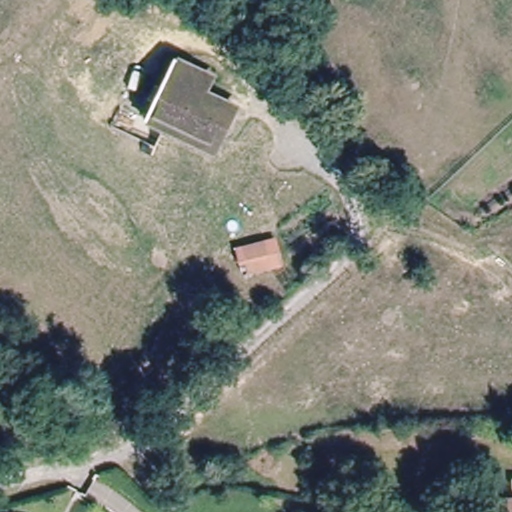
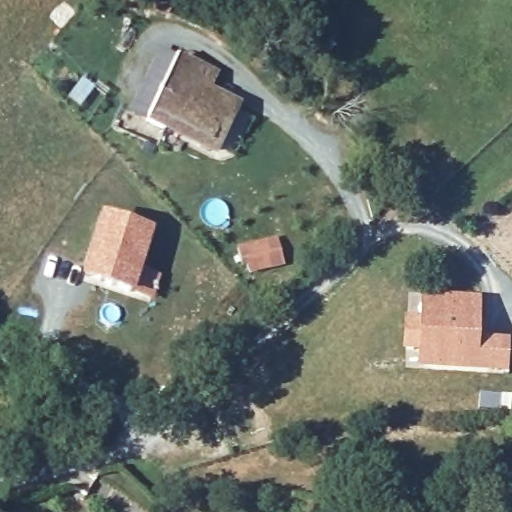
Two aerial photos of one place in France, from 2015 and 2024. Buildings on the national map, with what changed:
unchanged [(217,155),(149,122),(178,62),(215,80),(208,96),(238,110),(217,155)]
new [(131,295),(81,280),(100,214),(153,231),(141,270),(160,275),(153,301),(131,295)]
unchanged [(248,260),(243,262),(239,247),(264,241),(279,237),(284,263),(270,266),(251,271),(248,260)]
new [(416,370),(418,352),(401,351),(403,317),(419,317),(420,293),(480,297),(479,339),(508,340),(507,372),(416,370)]

